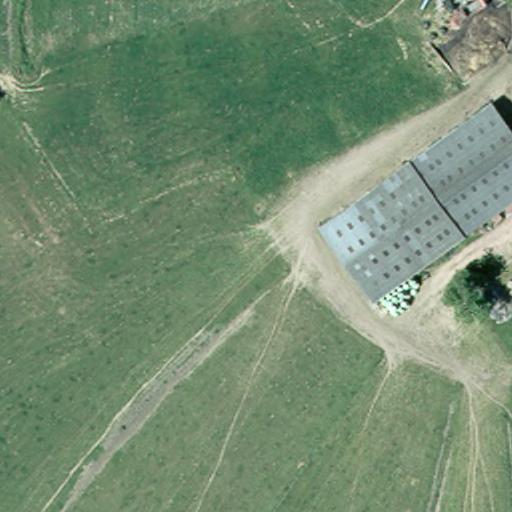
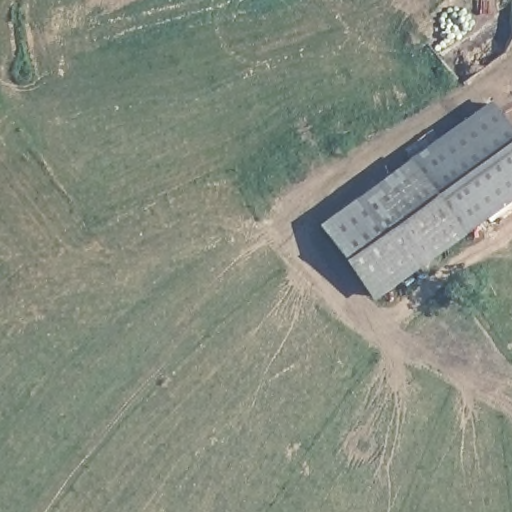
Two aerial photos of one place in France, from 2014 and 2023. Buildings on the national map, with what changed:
unchanged [(512,126),(512,206),(377,302),(320,225),(496,104),(512,126)]

